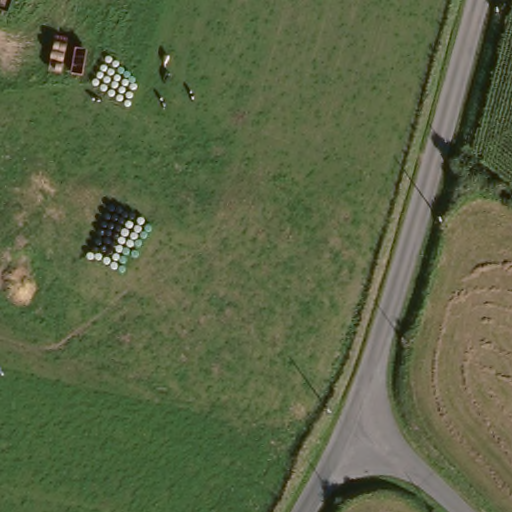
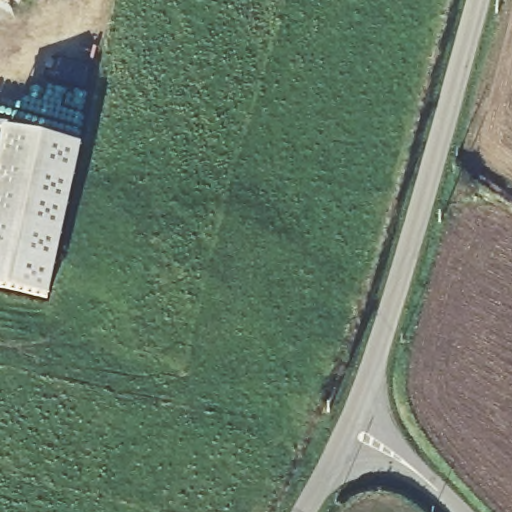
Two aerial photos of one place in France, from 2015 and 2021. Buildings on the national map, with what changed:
new [(82,146),(49,297),(0,287),(0,141),(2,130),(82,146)]

